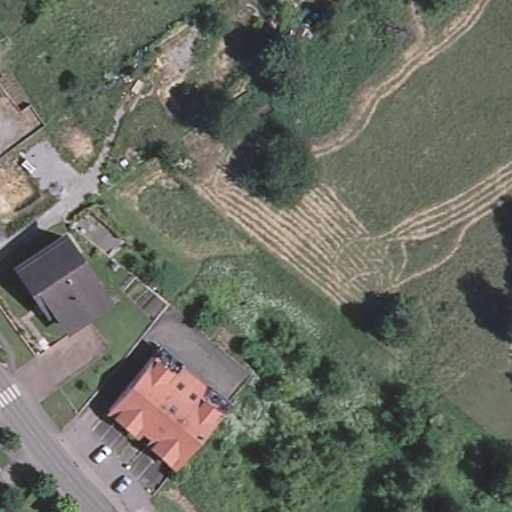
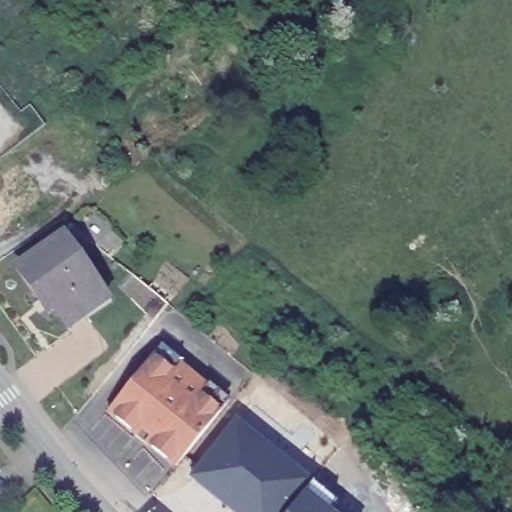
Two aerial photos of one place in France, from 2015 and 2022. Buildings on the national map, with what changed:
unchanged [(63,234),(93,276),(90,278),(91,280),(105,300),(84,314),(70,323),(57,306),(52,310),(20,263),(21,263),(48,245),(63,234)]
unchanged [(226,399),(217,410),(172,464),(144,440),(150,434),(139,425),(133,431),(105,407),(149,355),(158,342),(180,360),(205,381),(226,399)]
new [(312,473),(300,487),(333,512),(239,512),(192,473),(237,414),(312,473)]

